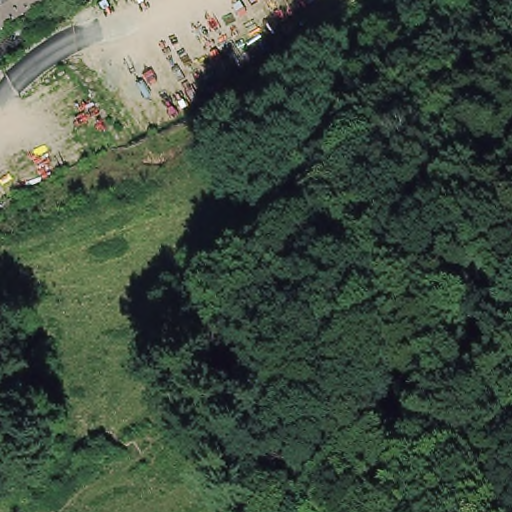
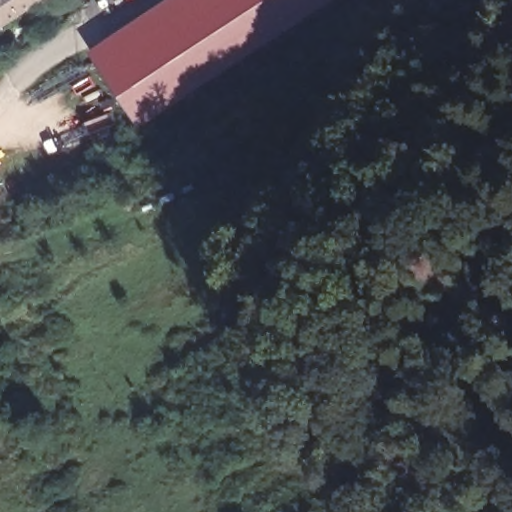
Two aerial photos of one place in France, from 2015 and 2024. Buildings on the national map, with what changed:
unchanged [(0,15),(0,0),(38,0),(5,23),(0,15)]
new [(97,43),(163,0),(323,0),(137,120),(97,43)]

